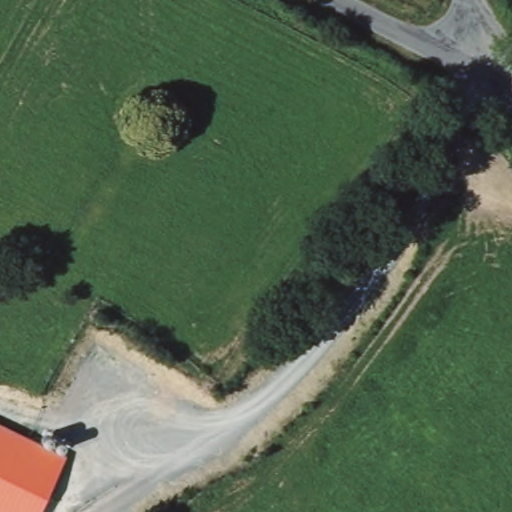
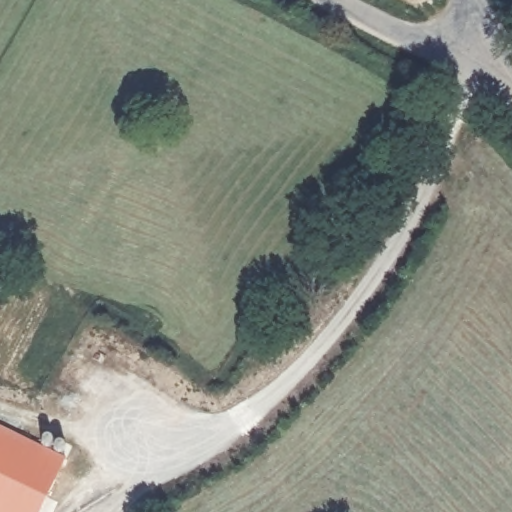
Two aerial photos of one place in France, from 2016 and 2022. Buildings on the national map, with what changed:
unchanged [(41,512),(0,512),(0,423),(67,454),(41,512)]

